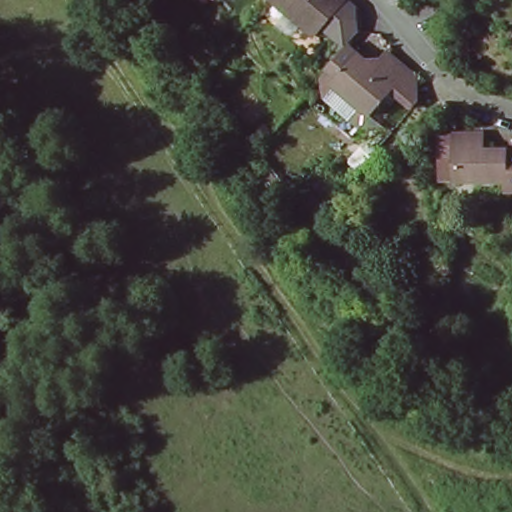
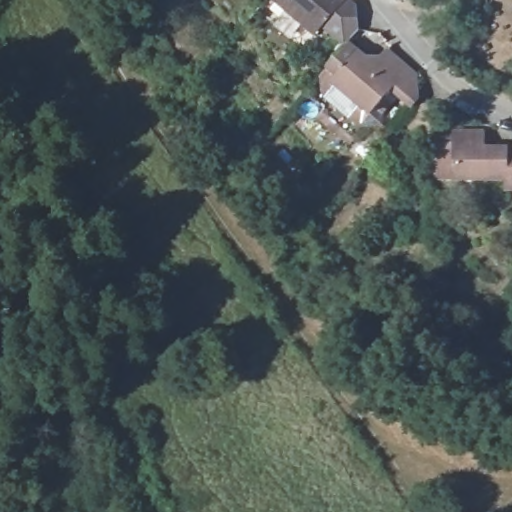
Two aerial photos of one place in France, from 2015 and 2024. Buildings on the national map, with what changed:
unchanged [(313,40),(268,2),(270,0),(342,0),(343,2),(313,40)]
unchanged [(324,69),(347,42),(368,60),(373,55),(379,59),(386,51),(411,71),(411,80),(399,94),(391,85),(369,109),(324,69)]
unchanged [(506,178),(453,179),(453,129),(483,129),(483,145),(506,145),(512,145),(512,185),(506,185),(506,178)]

